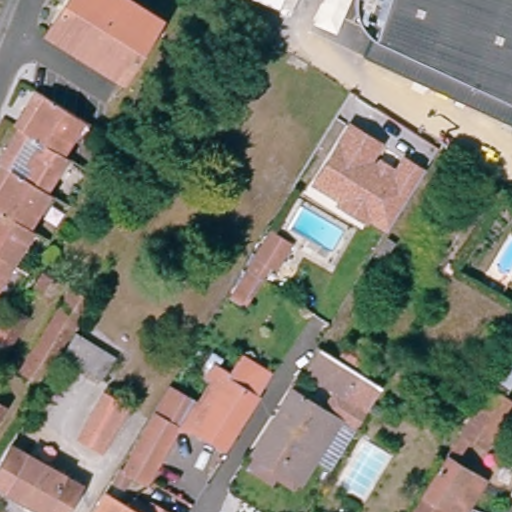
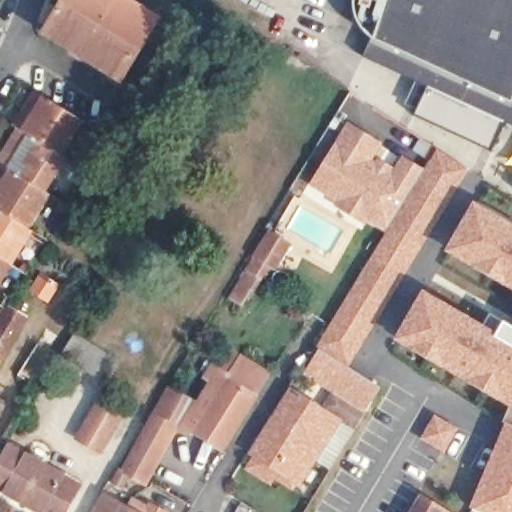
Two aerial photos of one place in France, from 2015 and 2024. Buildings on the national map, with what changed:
unchanged [(63,0),(107,0),(152,28),(122,73),(47,25),(63,0)]
unchanged [(370,33),(355,17),(351,4),(351,0),(512,0),(512,126),(360,54),(370,33)]
new [(504,122),(492,149),(416,115),(429,87),(504,122)]
unchanged [(2,165),(0,163),(0,156),(19,126),(15,123),(36,88),(82,117),(70,136),(61,151),(65,154),(53,174),(44,189),(49,192),(36,213),(27,228),(32,231),(20,249),(12,262),(0,282),(0,169),(2,165)]
unchanged [(383,140),(375,154),(393,164),(402,151),(425,166),(386,230),(367,218),(365,222),(331,202),(336,196),(310,180),(346,118),(383,140)]
new [(470,169),(348,368),(324,353),(317,347),(386,230),(425,166),(439,147),(470,169)]
new [(512,289),(445,252),(475,201),(512,223),(512,289)]
unchanged [(227,295),(243,271),(244,270),(255,253),(270,228),(287,239),(271,264),(270,262),(258,280),(258,281),(243,305),(227,295)]
demolished [(387,243),(395,247),(385,262),(378,257),(387,243)]
unchanged [(59,285),(47,302),(30,292),(41,275),(59,285)]
unchanged [(30,381),(13,370),(65,287),(82,297),(30,381)]
new [(510,405),(393,340),(423,290),(497,333),(505,320),(512,324),(512,512),(479,512),(470,508),(510,405)]
unchanged [(10,308),(27,318),(0,361),(0,325),(10,308)]
unchanged [(109,354),(95,375),(56,351),(70,330),(109,354)]
demolished [(350,345),(373,359),(366,372),(342,357),(350,345)]
demolished [(495,370),(488,366),(498,349),(505,353),(495,370)]
unchanged [(381,389),(365,416),(307,379),(324,353),(381,389)]
demolished [(507,354),(512,358),(512,381),(500,400),(508,405),(480,451),(463,441),(448,466),(477,485),(461,512),(441,512),(418,498),(507,354)]
unchanged [(189,432),(222,380),(223,381),(239,357),(265,374),(250,398),(217,450),(189,432)]
unchanged [(277,484),(273,489),(248,472),(257,457),(304,387),(345,413),(298,484),(292,493),(277,484)]
unchanged [(184,403),(170,427),(172,428),(140,484),(125,476),(116,488),(107,482),(115,471),(117,471),(161,393),(162,390),(184,403)]
unchanged [(104,396),(124,408),(100,452),(79,440),(104,396)]
unchanged [(2,409),(0,413),(0,407),(2,409)]
unchanged [(35,416),(30,422),(25,418),(29,412),(35,416)]
unchanged [(80,487),(65,512),(43,512),(0,488),(0,466),(10,448),(80,487)]
unchanged [(117,511),(125,498),(138,506),(149,512),(87,512),(95,498),(117,511)]
unchanged [(441,512),(410,512),(418,498),(441,512)]

